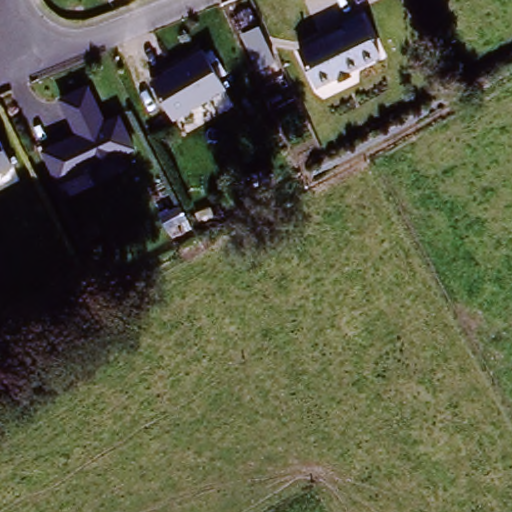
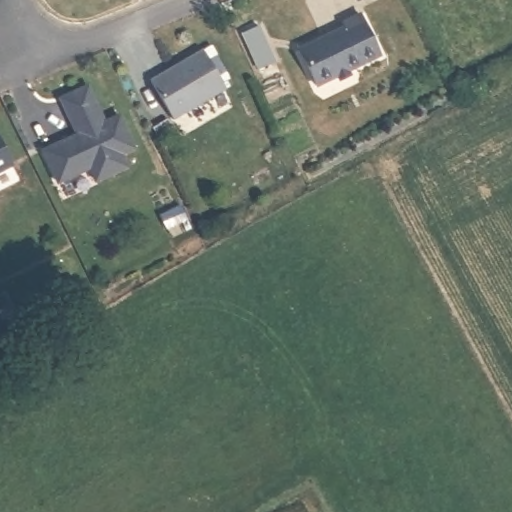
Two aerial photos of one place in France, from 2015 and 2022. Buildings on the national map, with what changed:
unchanged [(382,56),(317,88),(300,49),(346,28),(342,21),(362,13),(382,56)]
unchanged [(227,88),(176,120),(152,80),(205,49),(227,88)]
unchanged [(86,85),(102,120),(117,114),(132,145),(120,150),(126,164),(94,179),(88,167),(55,182),(41,151),(74,135),(57,99),(86,85)]
unchanged [(0,173),(0,140),(13,166),(0,173)]

